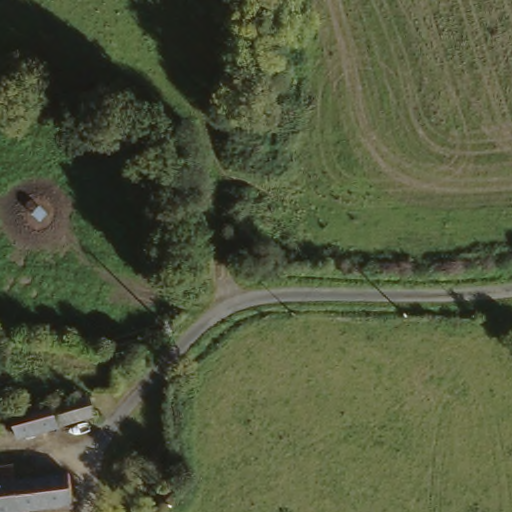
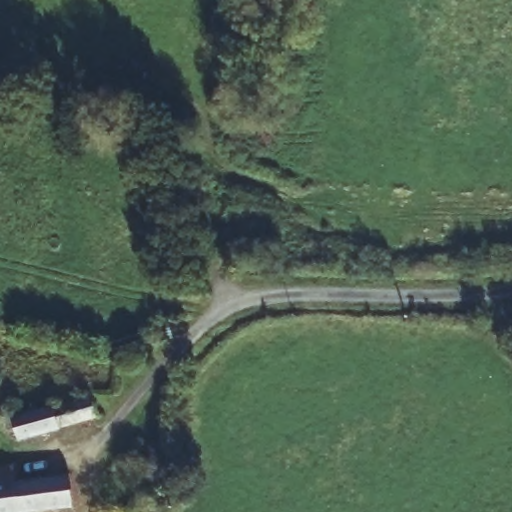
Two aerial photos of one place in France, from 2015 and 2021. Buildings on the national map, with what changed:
unchanged [(89,395),(94,416),(14,437),(10,417),(89,395)]
unchanged [(11,463),(14,480),(68,475),(71,504),(12,512),(0,512),(0,465),(11,463)]

